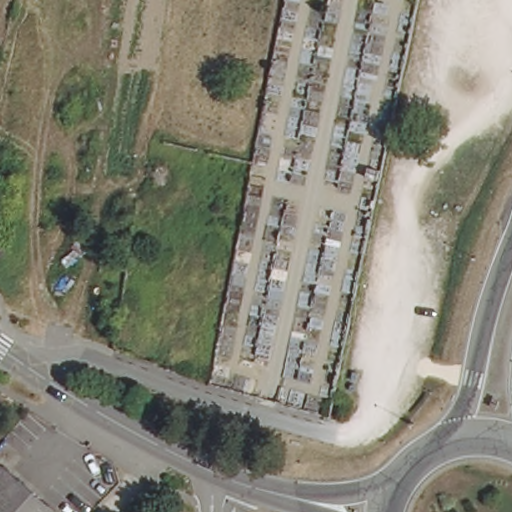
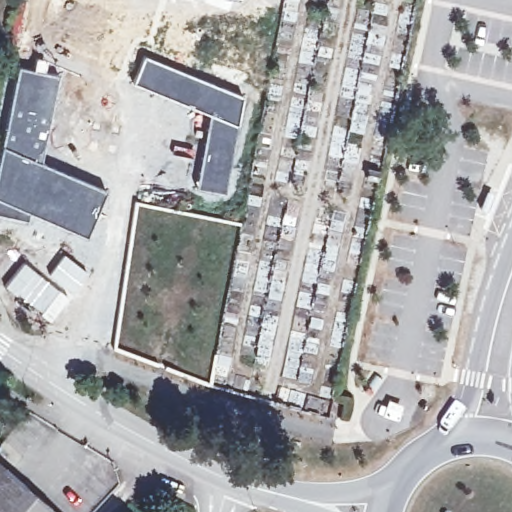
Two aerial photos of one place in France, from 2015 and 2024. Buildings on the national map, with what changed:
new [(143,54),(244,95),(238,124),(208,114),(131,82),(143,54)]
new [(59,73),(41,161),(105,189),(86,236),(28,212),(26,221),(0,214),(0,141),(17,65),(59,73)]
demolished [(168,160),(143,155),(146,137),(171,144),(168,160)]
unchanged [(0,254),(0,245),(3,246),(1,254),(0,254)]
new [(60,251),(87,271),(68,296),(49,321),(1,283),(22,258),(45,277),(60,251)]
unchanged [(0,464),(56,512),(0,512),(0,464)]

